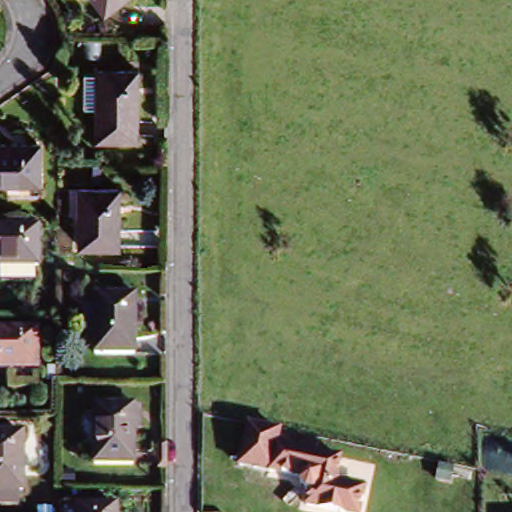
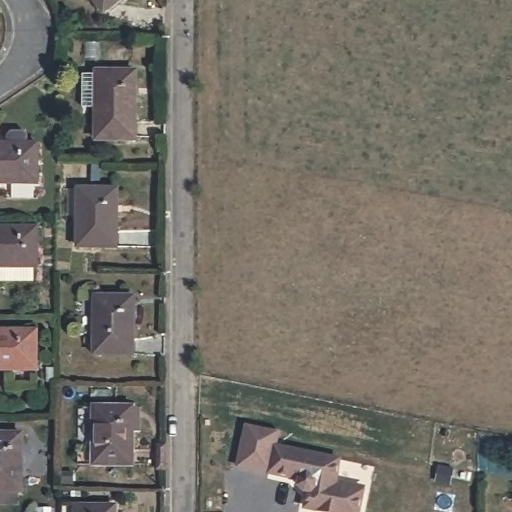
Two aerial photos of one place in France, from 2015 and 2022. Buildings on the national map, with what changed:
unchanged [(93,0),(121,0),(103,13),(93,0)]
unchanged [(91,75),(130,76),(130,145),(90,145),(91,75)]
unchanged [(33,149),(33,188),(0,188),(0,149),(33,149)]
unchanged [(113,194),(112,252),(72,252),(73,193),(113,194)]
unchanged [(32,227),(32,267),(30,267),(29,282),(0,282),(0,227),(32,227)]
unchanged [(130,361),(88,360),(90,301),(130,301),(130,361)]
unchanged [(37,331),(37,370),(0,370),(0,331),(37,331)]
unchanged [(93,470),(93,411),(133,412),(133,470),(93,470)]
unchanged [(283,446),(347,460),(342,485),(369,490),(364,512),(334,512),(312,507),(315,492),(311,491),(307,486),(309,479),(247,466),(255,425),(287,431),(283,446)]
unchanged [(22,448),(22,507),(0,507),(0,448),(22,448)]
unchanged [(110,512),(70,512),(70,510),(110,511),(110,512)]

